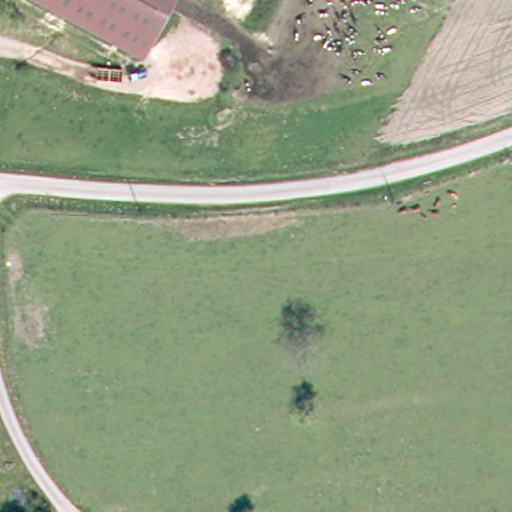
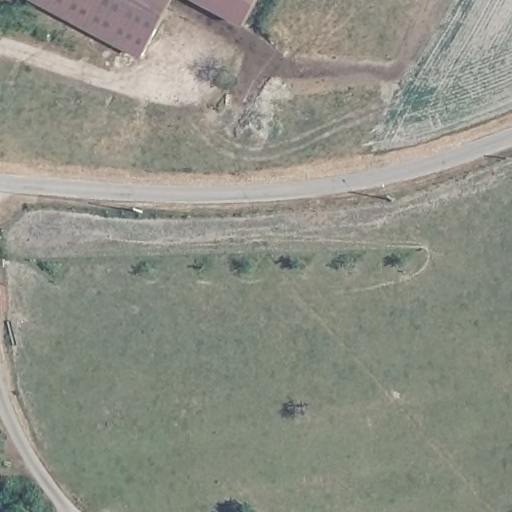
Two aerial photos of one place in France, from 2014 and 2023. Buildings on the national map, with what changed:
unchanged [(44,0),(170,0),(141,53),(44,0)]
new [(200,0),(258,0),(245,24),(200,0)]

